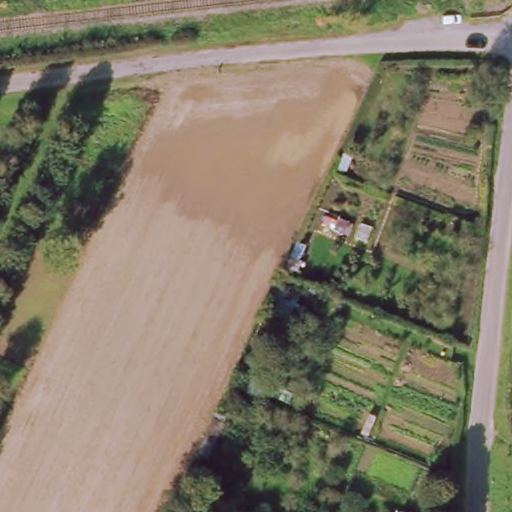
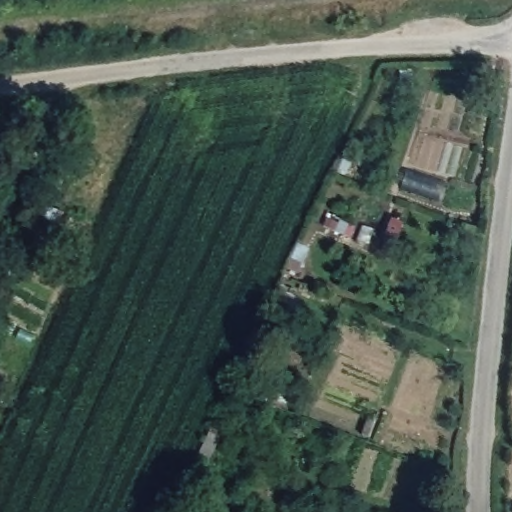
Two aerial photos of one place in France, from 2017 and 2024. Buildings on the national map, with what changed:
unchanged [(194,440),(203,421),(216,426),(208,446),(194,440)]

